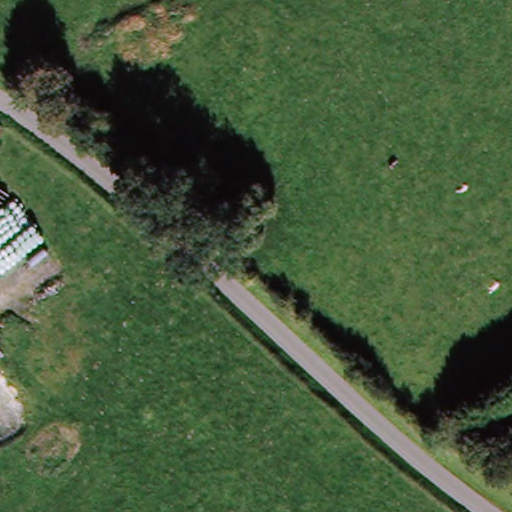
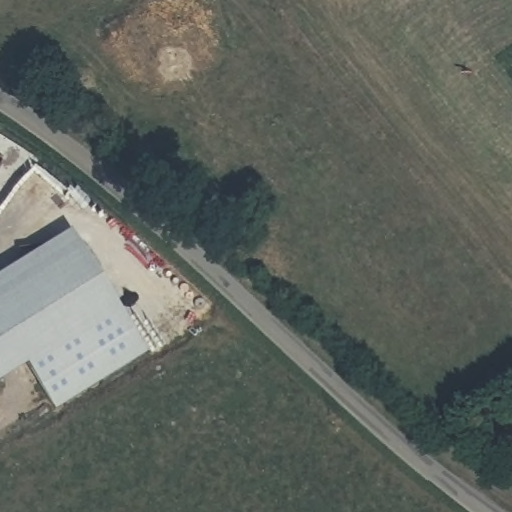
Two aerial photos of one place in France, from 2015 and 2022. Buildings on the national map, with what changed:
new [(35,421),(0,364),(0,292),(83,241),(123,307),(150,351),(35,421)]
new [(0,380),(0,364),(7,375),(0,380)]

